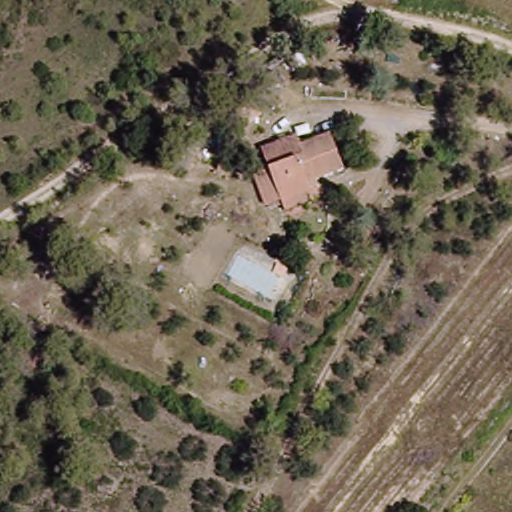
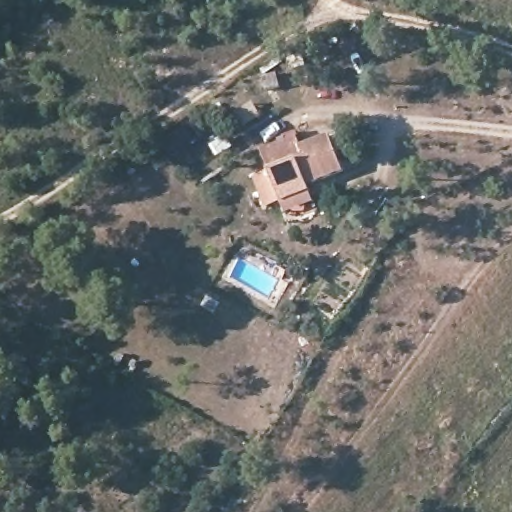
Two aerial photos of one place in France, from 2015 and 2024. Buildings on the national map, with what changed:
unchanged [(217,116),(225,126),(215,135),(207,125),(217,116)]
unchanged [(308,214),(298,202),(283,214),(262,184),(278,170),(268,151),(298,129),(302,135),(327,120),(349,151),(318,175),(325,184),(333,195),(308,214)]

